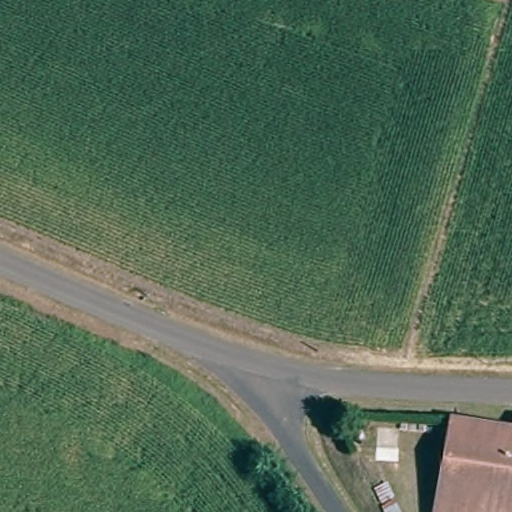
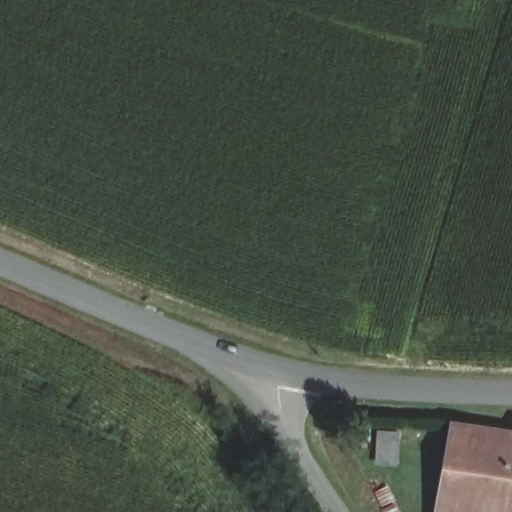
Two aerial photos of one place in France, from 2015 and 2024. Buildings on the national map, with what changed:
unchanged [(512,434),(512,512),(422,512),(452,423),(512,434)]

